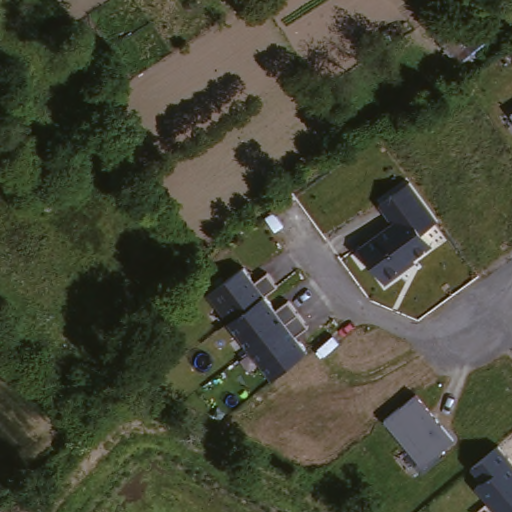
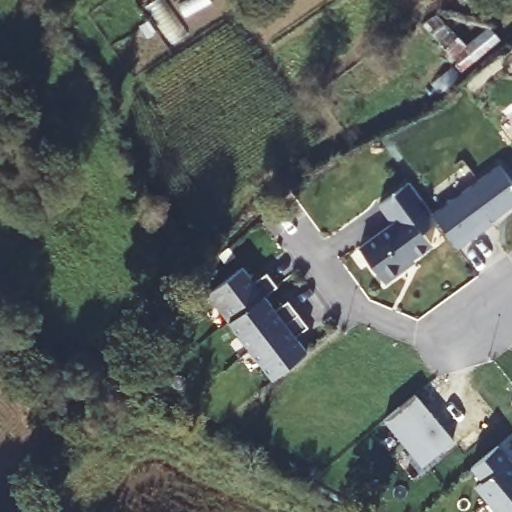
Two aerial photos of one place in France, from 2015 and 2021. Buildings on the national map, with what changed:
unchanged [(451,0),(464,0),(461,6),(451,0)]
unchanged [(512,114),(509,111),(512,110),(512,114)]
new [(512,207),(459,246),(434,211),(500,165),(512,182),(512,207)]
unchanged [(389,222),(376,204),(408,181),(436,218),(419,228),(433,241),(385,277),(355,246),(389,222)]
unchanged [(227,322),(205,295),(242,265),(263,293),(268,307),(306,352),(272,379),(227,322)]
unchanged [(455,441),(421,465),(384,414),(417,391),(455,441)]
unchanged [(512,512),(501,512),(468,466),(500,444),(512,459),(512,512)]

